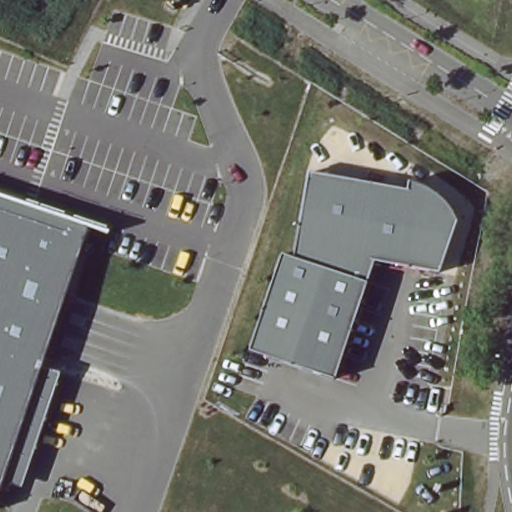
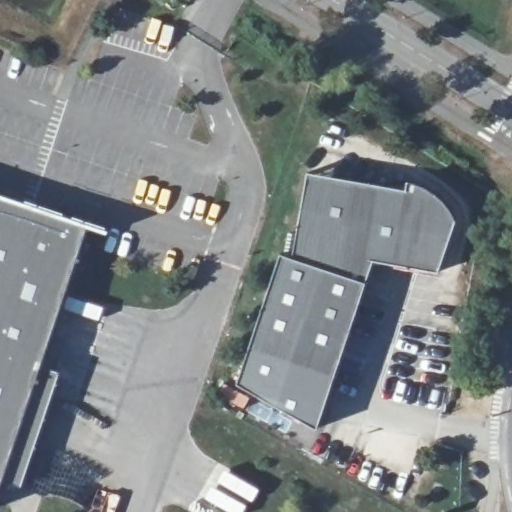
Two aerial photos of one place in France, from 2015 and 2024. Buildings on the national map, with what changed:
unchanged [(282,255),(293,259),(306,175),(407,191),(409,180),(425,187),(440,196),(449,206),(456,220),(439,272),(375,261),(333,379),(248,351),(282,255)]
unchanged [(39,366),(55,371),(18,486),(1,481),(0,484),(0,194),(90,224),(39,366)]
new [(316,429),(237,383),(248,351),(333,379),(316,429)]

